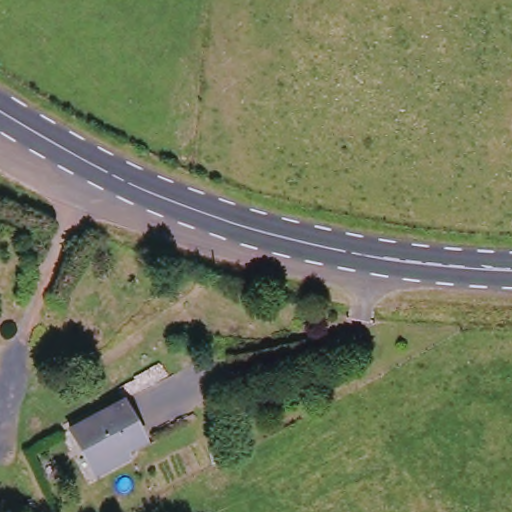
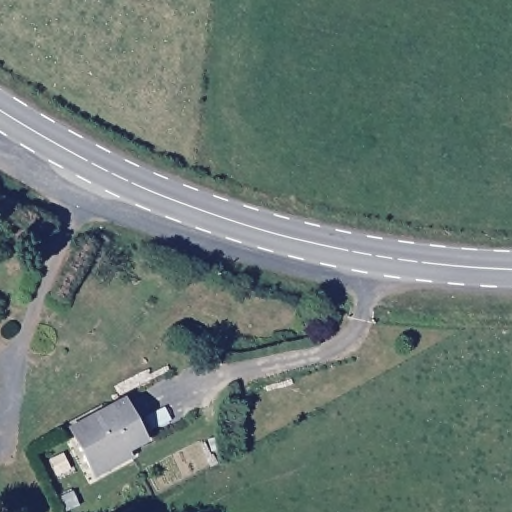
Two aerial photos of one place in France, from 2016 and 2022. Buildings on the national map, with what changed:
unchanged [(70,430),(76,426),(122,400),(146,438),(130,448),(133,455),(119,463),(95,476),(70,430)]

